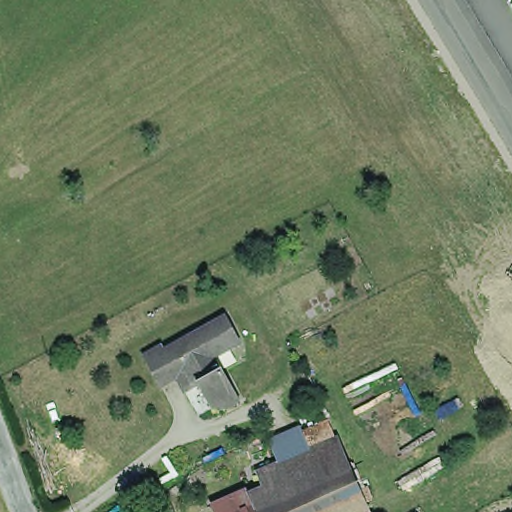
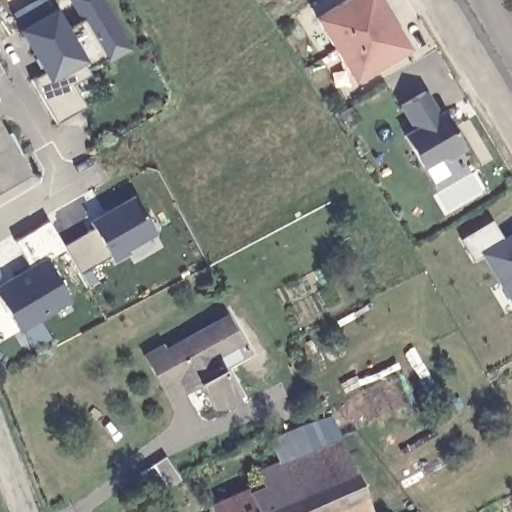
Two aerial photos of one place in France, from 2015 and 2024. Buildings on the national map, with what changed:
new [(106,61),(88,71),(91,77),(74,86),(87,107),(58,124),(32,81),(45,74),(18,29),(57,6),(69,26),(79,20),(67,0),(105,0),(133,50),(108,64),(106,61)]
new [(314,20),(346,0),(381,0),(411,49),(354,84),(314,20)]
new [(424,90),(439,114),(443,111),(464,146),(446,157),(440,155),(423,165),(404,134),(415,128),(401,104),(424,90)]
new [(0,189),(0,125),(29,173),(0,189)]
new [(139,199),(160,239),(113,265),(110,256),(81,271),(65,247),(139,199)]
new [(475,261),(462,240),(492,221),(504,239),(512,233),(512,307),(482,257),(475,261)]
new [(19,333),(0,300),(0,283),(42,258),(69,303),(19,333)]
unchanged [(207,339),(231,326),(236,336),(159,381),(151,366),(205,336),(207,339)]
unchanged [(215,412),(208,399),(203,392),(199,394),(196,389),(187,393),(181,385),(165,393),(159,381),(236,336),(243,349),(216,364),(222,376),(225,375),(230,384),(238,399),(215,412)]
unchanged [(272,510),(260,483),(336,449),(348,475),(351,474),(363,498),(370,495),(375,507),(368,510),(362,512),(266,512),(272,510)]
unchanged [(239,506),(252,501),(256,512),(224,512),(239,506)]

